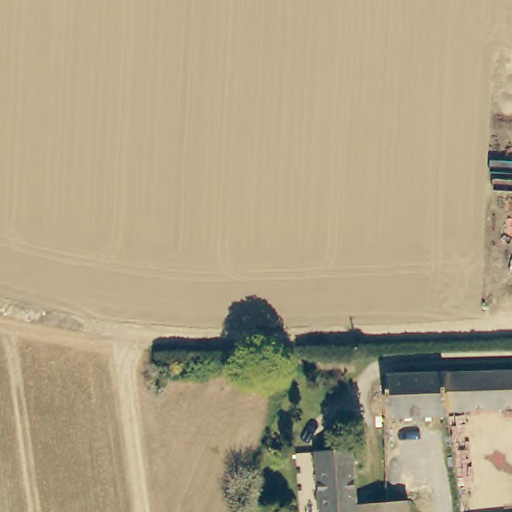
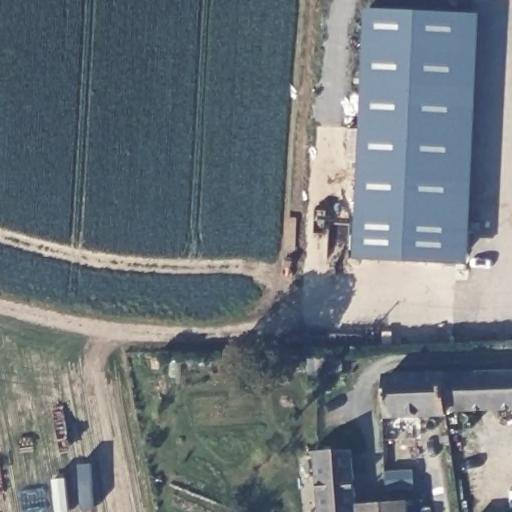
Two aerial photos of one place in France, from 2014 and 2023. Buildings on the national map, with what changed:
new [(481,15),(469,265),(356,258),(368,9),(481,15)]
unchanged [(340,373),(313,375),(312,357),(338,356),(340,373)]
unchanged [(446,371),(512,370),(512,408),(448,410),(446,371)]
unchanged [(388,417),(387,372),(446,371),(448,410),(449,415),(388,417)]
unchanged [(319,450),(357,450),(362,505),(363,512),(324,512),(319,450)]
unchanged [(362,505),(394,503),(414,503),(415,512),(363,512),(362,505)]

